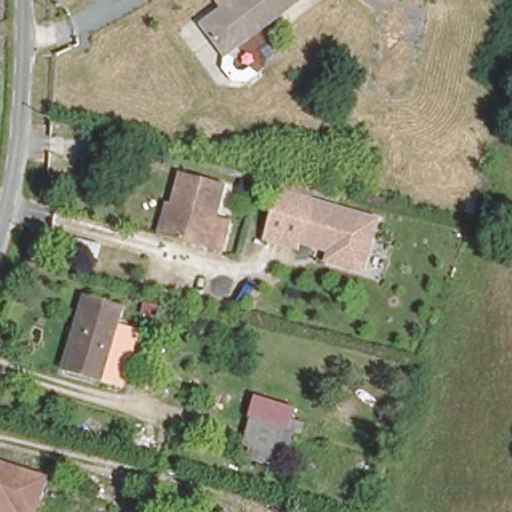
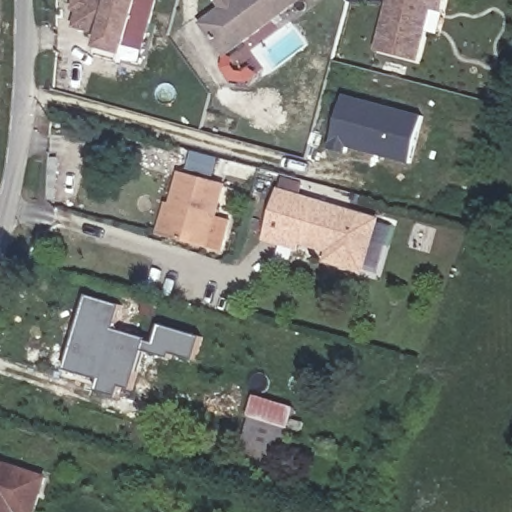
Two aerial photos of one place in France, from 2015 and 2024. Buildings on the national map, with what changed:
new [(142,52),(125,48),(123,56),(96,48),(99,36),(73,29),(77,12),(73,10),(76,0),(156,0),(142,52)]
unchanged [(233,0),(297,0),(225,54),(202,23),(233,0)]
new [(441,13),(431,11),(418,62),(375,51),(388,0),(445,0),(441,13)]
new [(341,97),(420,119),(408,162),(345,144),(342,155),(326,150),(341,97)]
unchanged [(283,171),(319,182),(314,197),(379,216),(362,274),(323,263),(326,255),(300,247),(297,253),(261,242),(283,171)]
unchanged [(219,253),(204,249),(153,234),(161,206),(167,208),(175,178),(220,191),(212,220),(227,224),(219,253)]
unchanged [(80,293),(117,304),(109,331),(122,335),(109,382),(58,367),(80,293)]
unchanged [(254,407),(295,418),(292,431),(297,432),(289,461),(243,448),(254,407)]
unchanged [(34,512),(20,512),(14,511),(14,512),(0,512),(0,465),(43,477),(34,512)]

